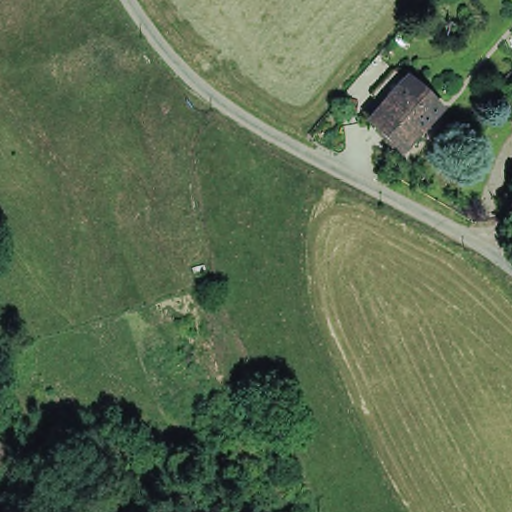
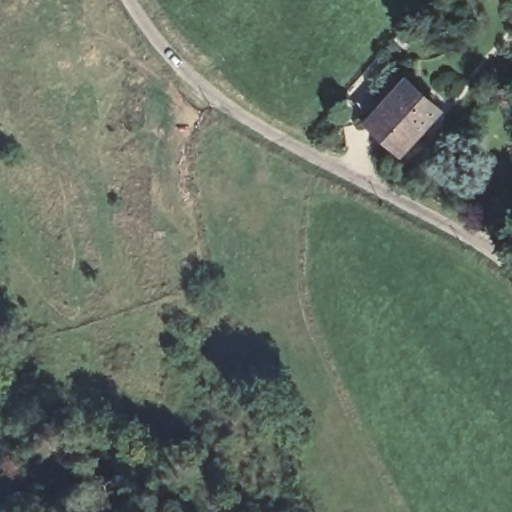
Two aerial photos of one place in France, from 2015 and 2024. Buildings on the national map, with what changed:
unchanged [(402,76),(434,104),(400,145),(366,118),(402,76)]
unchanged [(17,489),(3,493),(0,481),(0,477),(13,474),(17,489)]

